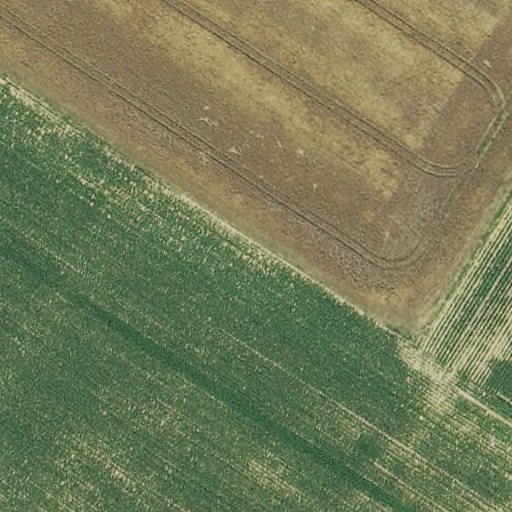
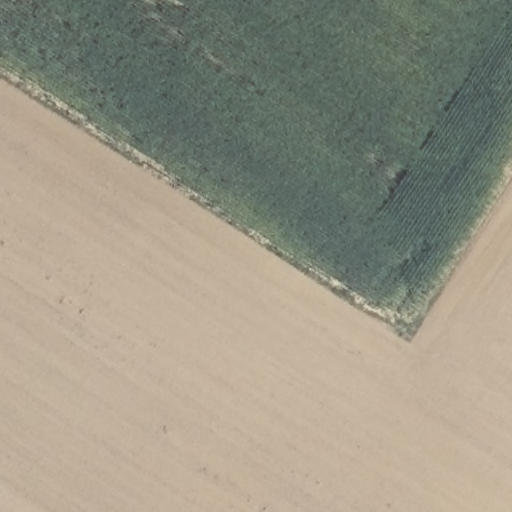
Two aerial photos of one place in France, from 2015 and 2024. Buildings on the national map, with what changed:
[]

